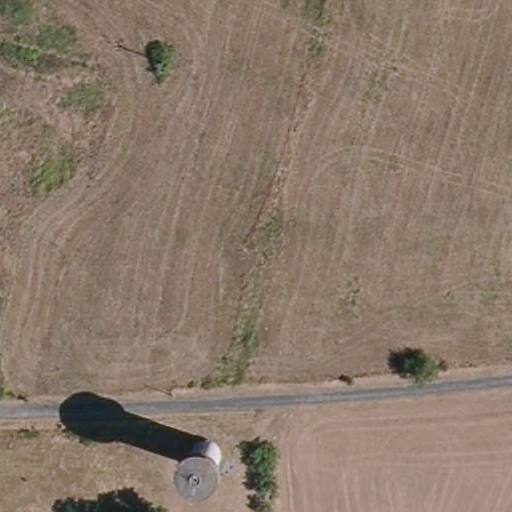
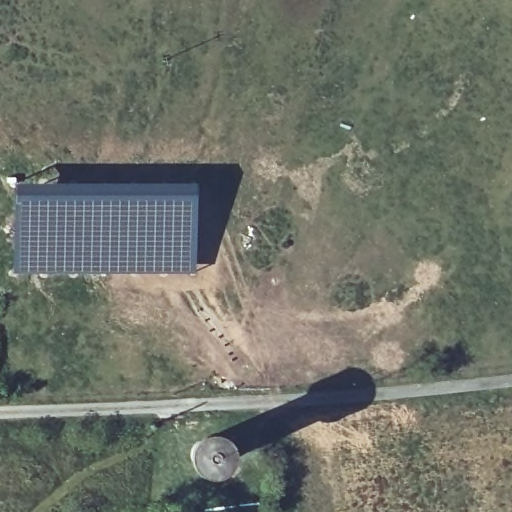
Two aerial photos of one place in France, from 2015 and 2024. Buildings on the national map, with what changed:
new [(13,184),(31,184),(31,189),(65,187),(65,190),(195,191),(196,273),(47,274),(11,272),(13,184)]

